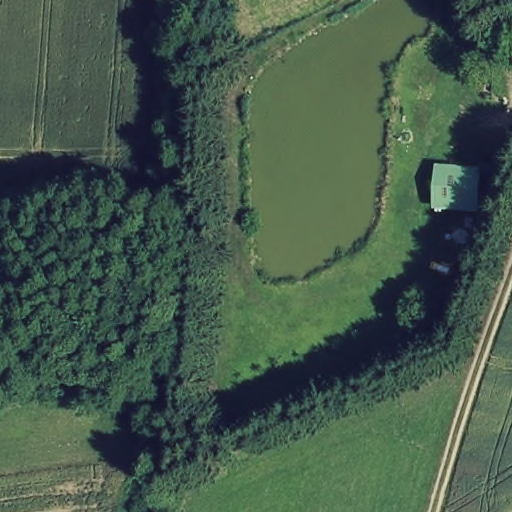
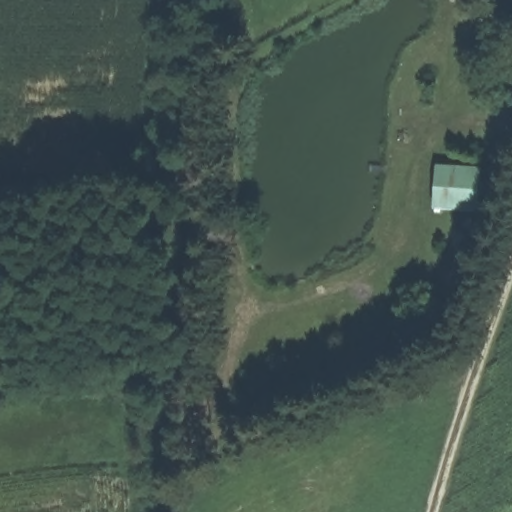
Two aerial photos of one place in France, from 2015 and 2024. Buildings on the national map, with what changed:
unchanged [(481,170),(477,204),(448,205),(452,167),(481,170)]

